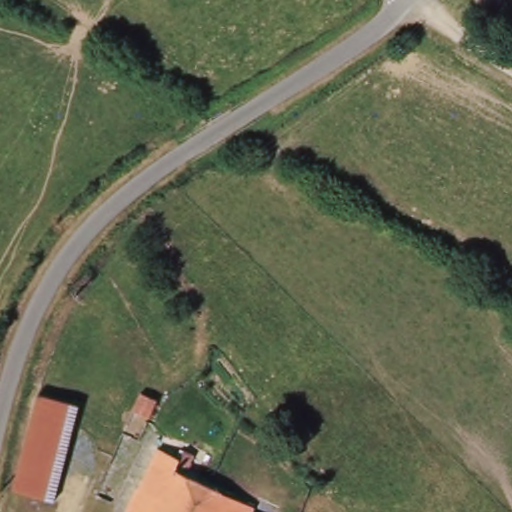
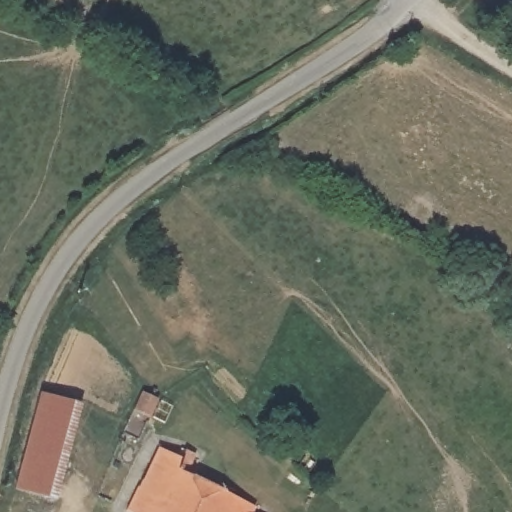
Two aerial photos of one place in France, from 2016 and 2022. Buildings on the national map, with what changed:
unchanged [(139,398),(132,417),(116,410),(124,391),(139,398)]
unchanged [(70,396),(57,497),(25,493),(38,392),(70,396)]
unchanged [(198,452),(188,476),(211,486),(199,512),(123,512),(113,507),(129,472),(145,437),(156,443),(184,456),(188,448),(198,452)]
unchanged [(259,507),(256,512),(199,512),(211,486),(259,507)]

